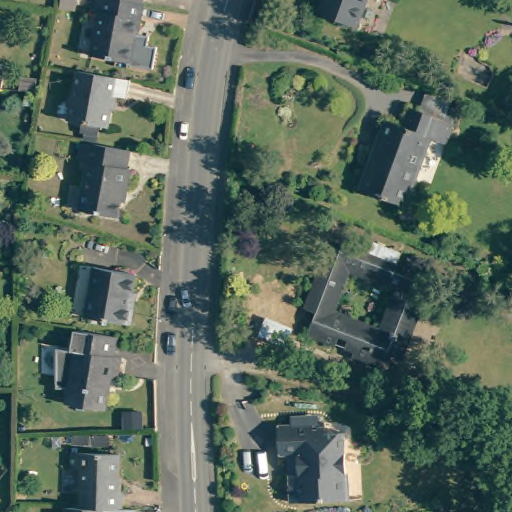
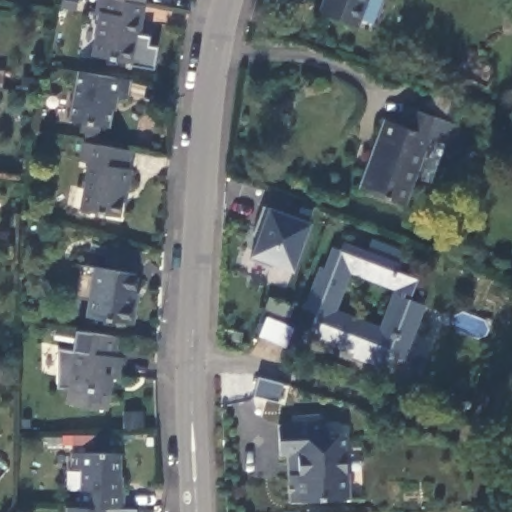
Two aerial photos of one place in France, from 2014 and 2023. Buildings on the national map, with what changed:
unchanged [(158,29),(156,38),(166,40),(161,62),(136,58),(136,55),(100,48),(108,6),(105,5),(106,0),(152,0),(146,27),(158,29)]
unchanged [(364,0),(355,23),(319,9),(323,0),(364,0)]
unchanged [(95,138),(96,130),(93,129),(94,120),(80,117),(87,69),(139,78),(137,95),(125,93),(119,124),(111,122),(110,132),(108,140),(95,138)]
unchanged [(395,126),(402,107),(412,111),(419,92),(452,105),(444,124),(437,143),(421,136),(394,206),(351,189),(379,119),(395,126)]
unchanged [(136,166),(140,166),(137,185),(133,185),(128,214),(91,206),(99,159),(89,156),(92,139),(139,148),(136,166)]
new [(292,271),(251,254),(258,235),(255,233),(264,206),(268,206),(310,222),(292,271)]
unchanged [(429,273),(407,364),(314,329),(345,238),(429,273)]
unchanged [(138,322),(96,314),(104,265),(143,271),(141,286),(143,288),(141,300),(142,300),(138,322)]
unchanged [(123,352),(132,354),(128,376),(120,375),(114,407),(73,400),(81,347),(79,347),(81,327),(126,335),(123,352)]
unchanged [(286,448),(284,417),(312,415),(325,416),(325,425),(342,425),(344,470),(348,472),(349,492),(290,496),(288,466),(296,466),(294,449),(286,448)]
unchanged [(128,491),(129,491),(129,507),(124,506),(84,506),(84,468),(76,467),(75,451),(123,452),(124,475),(127,475),(128,491)]
unchanged [(84,506),(124,506),(124,512),(70,512),(70,505),(84,506)]
unchanged [(322,510),(323,512),(299,512),(299,511),(322,510)]

